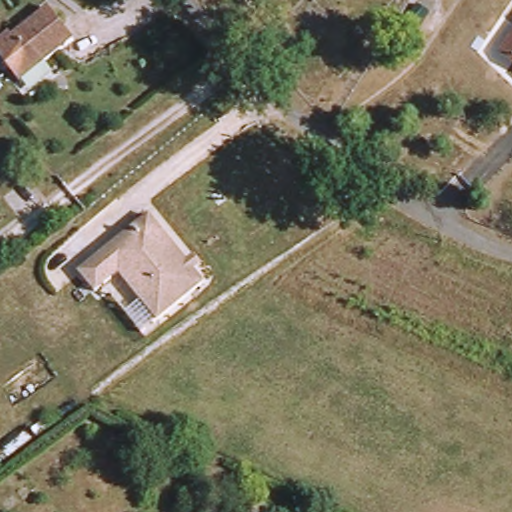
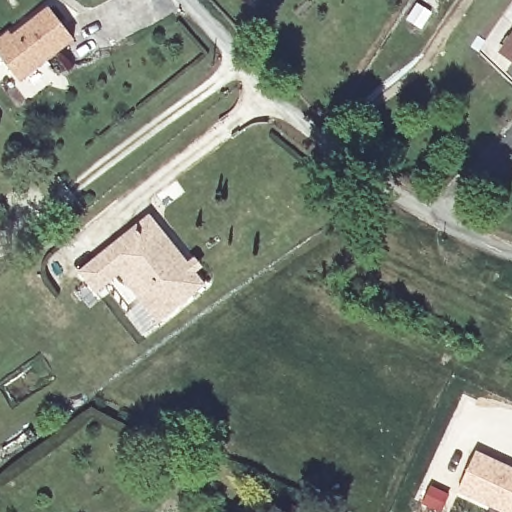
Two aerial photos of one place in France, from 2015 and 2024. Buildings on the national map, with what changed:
unchanged [(20,87),(0,60),(0,43),(8,36),(14,42),(49,13),(74,44),(20,87)]
new [(497,50),(512,30),(512,61),(497,50)]
demolished [(493,70),(512,42),(512,84),(493,70)]
unchanged [(205,290),(158,325),(120,274),(96,292),(80,271),(152,218),(205,290)]
new [(476,448),(512,466),(512,512),(496,512),(456,493),(476,448)]

